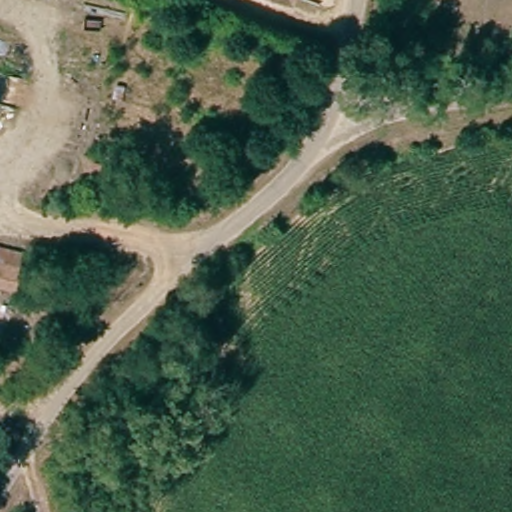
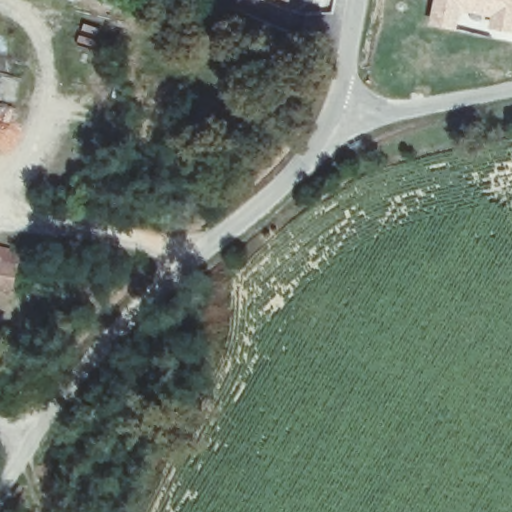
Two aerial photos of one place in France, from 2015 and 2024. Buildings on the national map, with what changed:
new [(491,15),(462,10),(457,30),(429,24),(434,0),(512,0),(512,33),(488,29),(491,15)]
unchanged [(19,290),(0,285),(0,260),(25,266),(19,290)]

